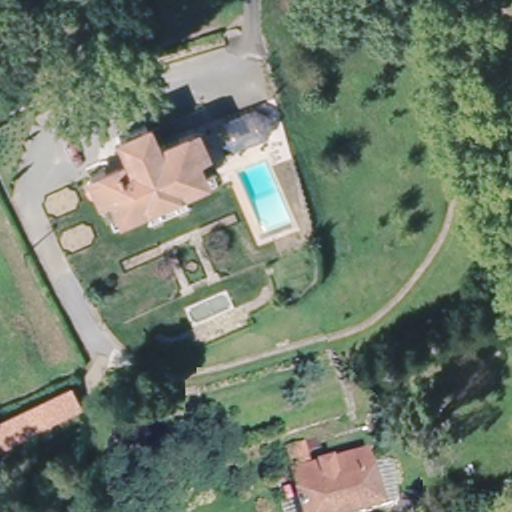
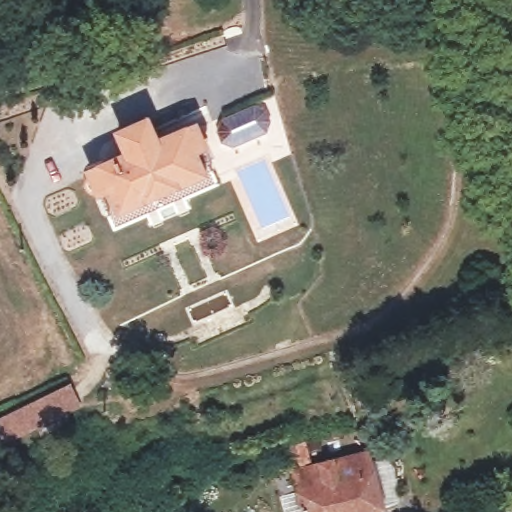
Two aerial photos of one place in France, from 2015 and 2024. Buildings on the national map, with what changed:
unchanged [(256,101),(272,131),(226,148),(214,122),(256,101)]
unchanged [(121,133),(148,120),(158,141),(196,123),(199,129),(205,127),(209,135),(202,138),(206,145),(194,152),(203,172),(124,210),(113,187),(102,193),(99,187),(93,190),(89,182),(96,179),(92,172),(132,154),(121,133)]
unchanged [(0,429),(0,424),(67,392),(75,411),(7,443),(0,429)]
unchanged [(364,450),(382,509),(373,512),(303,512),(287,451),(303,446),(309,465),(364,450)]

